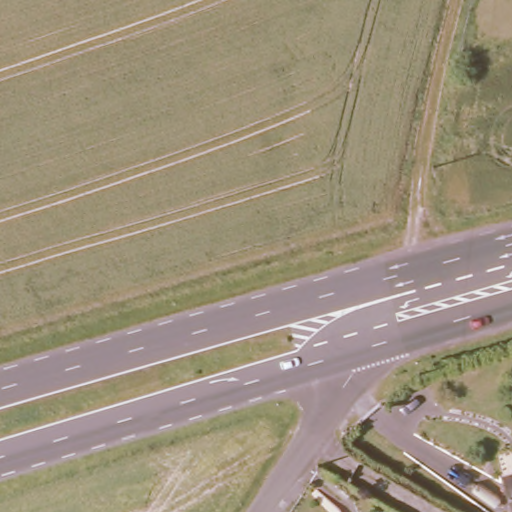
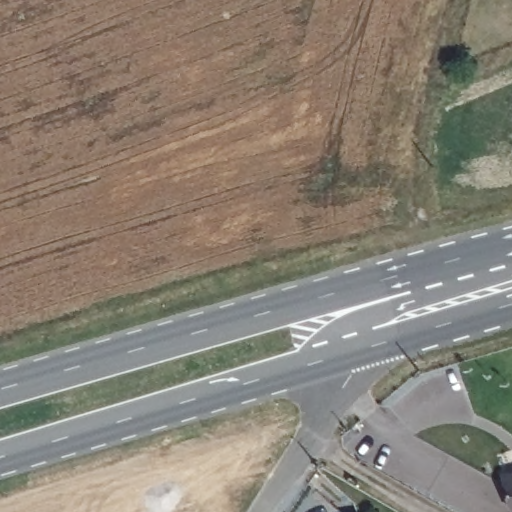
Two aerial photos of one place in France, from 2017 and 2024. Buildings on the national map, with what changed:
unchanged [(512,468),(512,512),(511,512),(499,473),(512,468)]

